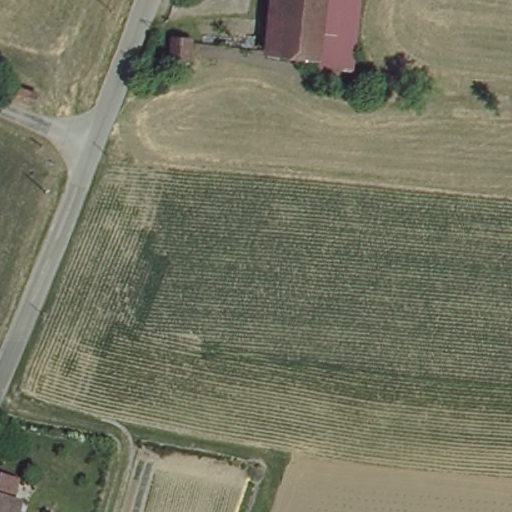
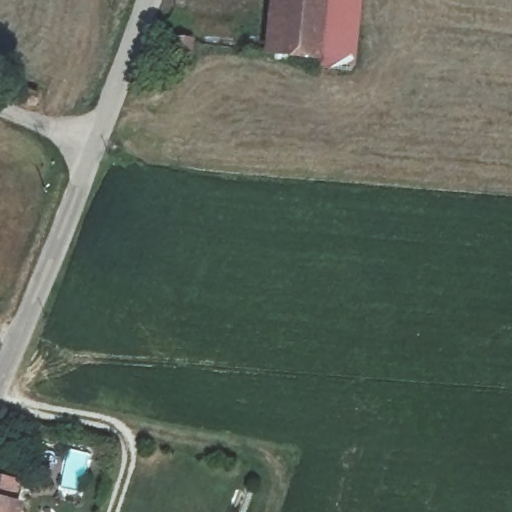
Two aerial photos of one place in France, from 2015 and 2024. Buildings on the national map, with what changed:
unchanged [(350,68),(266,51),(272,0),(360,0),(350,68)]
unchanged [(189,45),(186,64),(171,62),(173,44),(189,45)]
unchanged [(32,109),(13,103),(16,93),(35,99),(32,109)]
unchanged [(41,512),(0,512),(0,490),(43,500),(41,512)]

